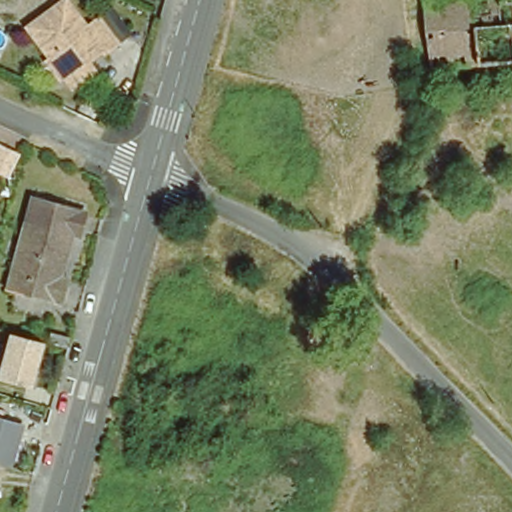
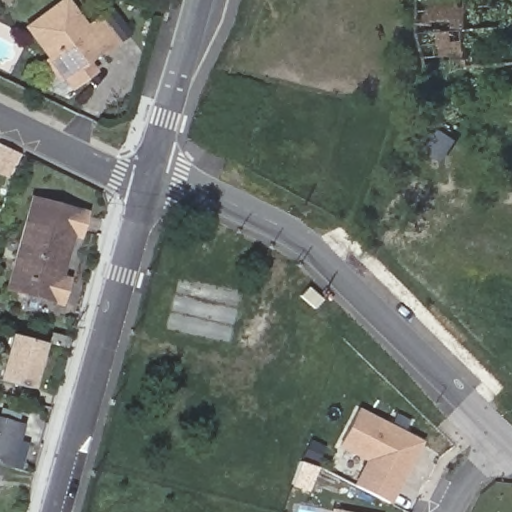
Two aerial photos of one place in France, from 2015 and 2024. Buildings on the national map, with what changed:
unchanged [(41,72),(48,68),(24,37),(61,9),(83,37),(95,28),(107,19),(121,37),(126,44),(114,53),(100,62),(97,58),(84,68),(91,79),(87,83),(69,96),(60,84),(53,88),(41,72)]
unchanged [(0,176),(0,145),(21,155),(9,180),(0,176)]
unchanged [(56,308),(3,293),(21,226),(27,203),(80,216),(74,239),(66,237),(54,281),(62,284),(56,308)]
unchanged [(51,333),(69,338),(68,347),(49,342),(51,333)]
unchanged [(0,380),(0,367),(10,334),(46,343),(32,389),(0,380)]
new [(356,407),(418,439),(385,501),(352,483),(366,455),(339,440),(356,407)]
unchanged [(9,472),(0,470),(0,423),(20,428),(9,472)]
new [(337,512),(329,512),(330,510),(337,512)]

